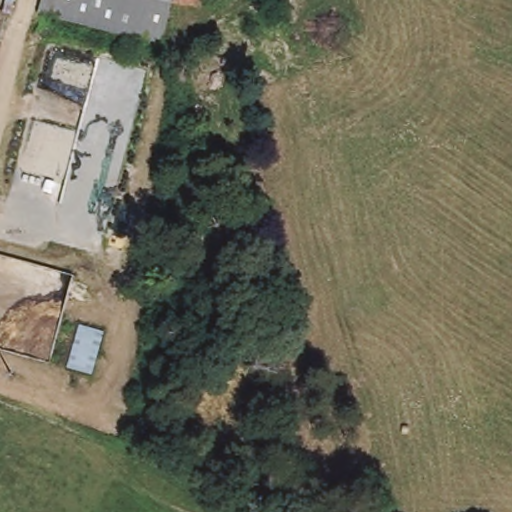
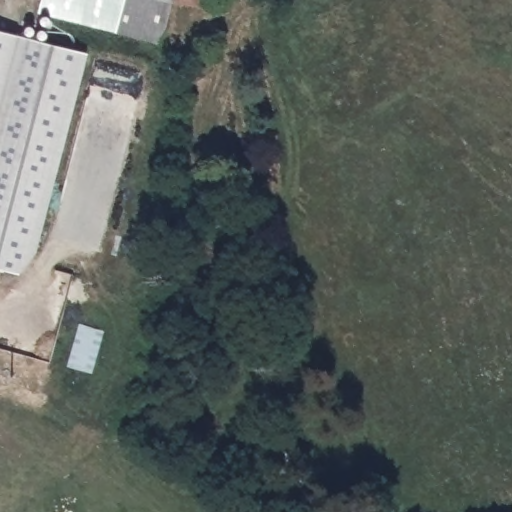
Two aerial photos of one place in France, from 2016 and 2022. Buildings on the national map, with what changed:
unchanged [(157,40),(148,37),(56,13),(35,7),(37,0),(165,0),(157,40)]
unchanged [(193,5),(176,0),(193,0),(193,5)]
new [(87,55),(36,254),(18,272),(0,268),(0,29),(87,55)]

